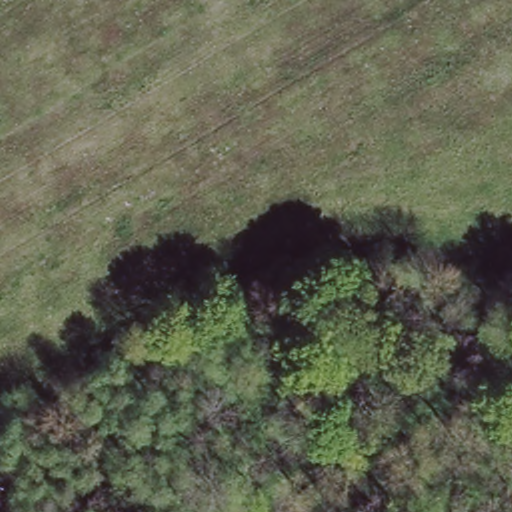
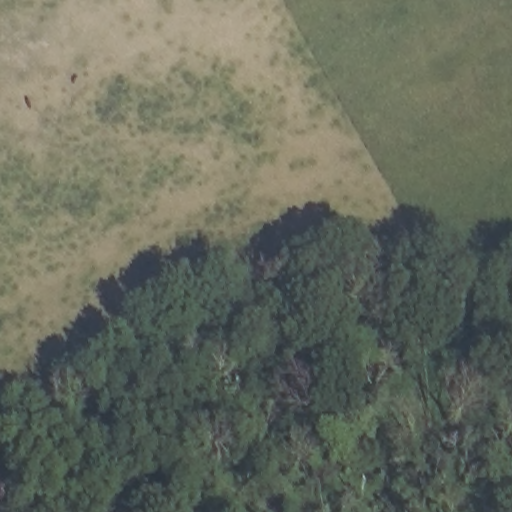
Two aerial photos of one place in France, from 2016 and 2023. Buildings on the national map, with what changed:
[]

